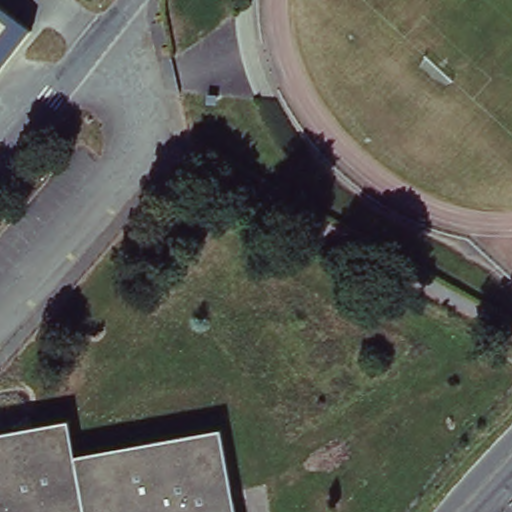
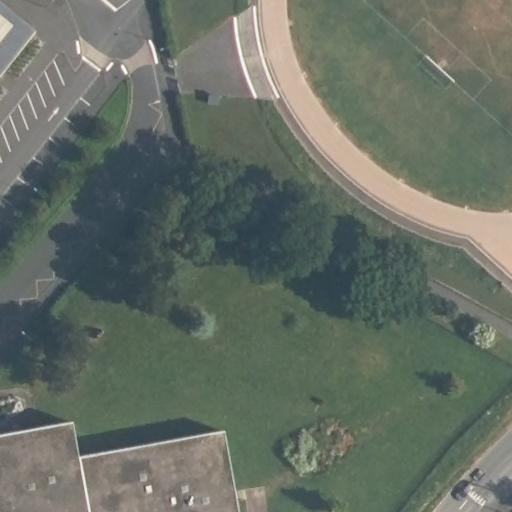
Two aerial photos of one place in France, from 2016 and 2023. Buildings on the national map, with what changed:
unchanged [(0,71),(0,5),(31,29),(0,71)]
unchanged [(69,457),(216,427),(235,512),(0,512),(0,439),(62,425),(69,457)]

